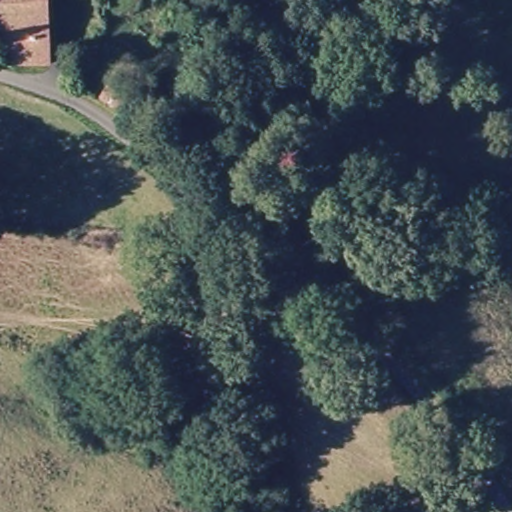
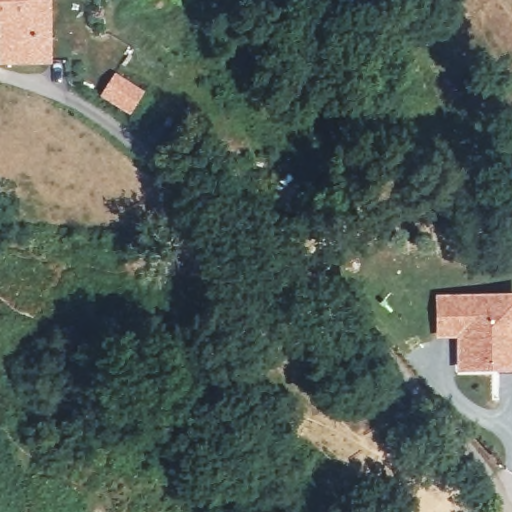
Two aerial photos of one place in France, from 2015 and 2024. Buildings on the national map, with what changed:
unchanged [(0,41),(0,0),(49,0),(48,43),(0,41)]
unchanged [(0,41),(48,43),(46,63),(0,60),(0,41)]
unchanged [(134,119),(105,97),(116,81),(145,104),(134,119)]
new [(458,371),(458,340),(435,339),(435,295),(512,295),(512,371),(458,371)]

